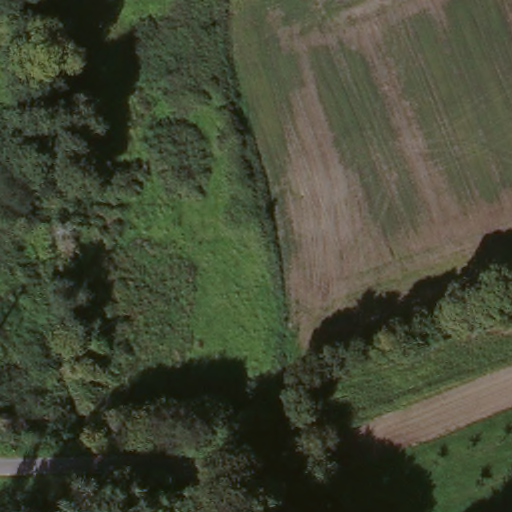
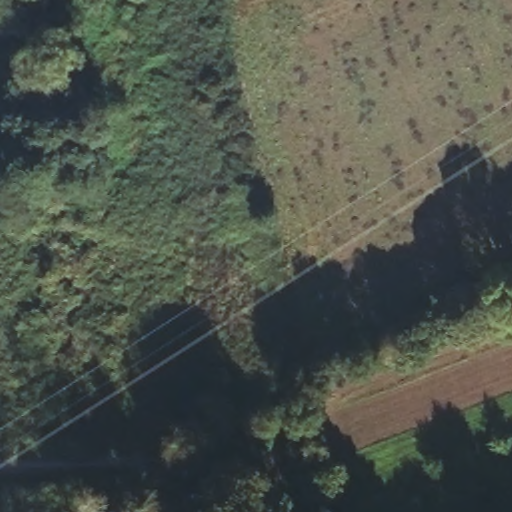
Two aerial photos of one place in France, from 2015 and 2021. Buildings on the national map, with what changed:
[]

